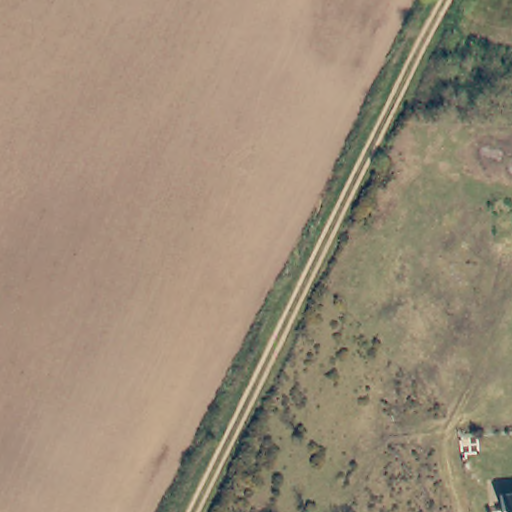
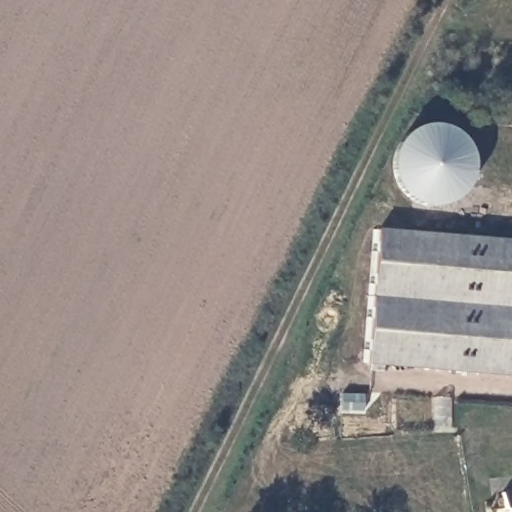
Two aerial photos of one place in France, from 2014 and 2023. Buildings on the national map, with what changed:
new [(377,231),(512,240),(512,377),(366,365),(377,231)]
unchanged [(512,512),(500,512),(498,495),(512,494),(512,512)]

